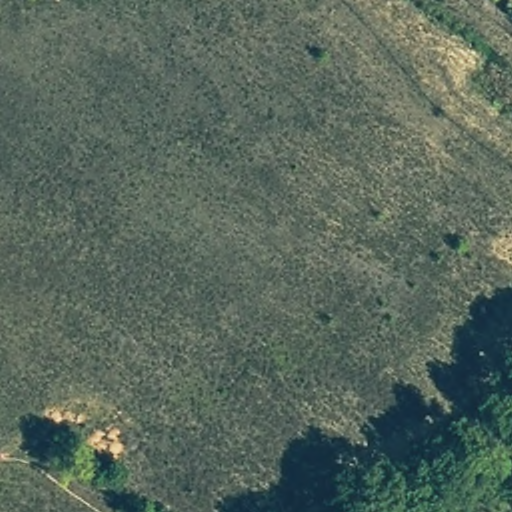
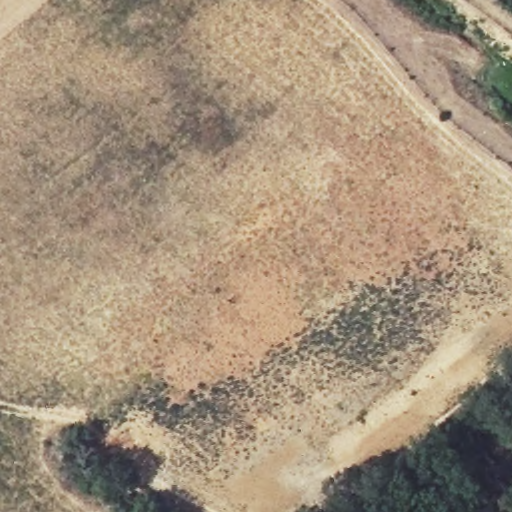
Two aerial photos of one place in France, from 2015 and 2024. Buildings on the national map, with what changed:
[]

